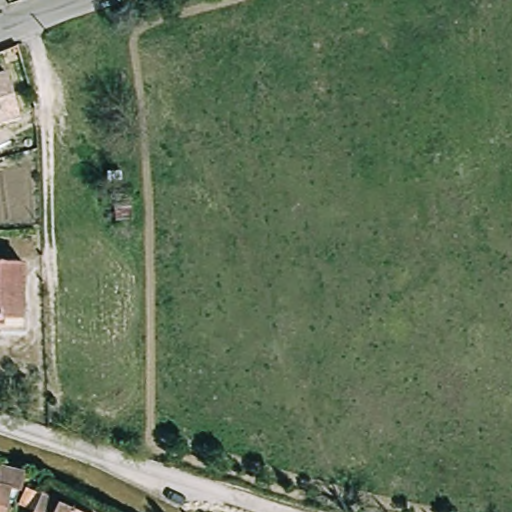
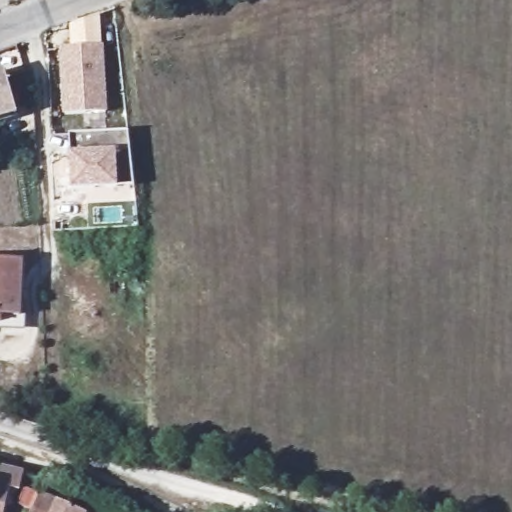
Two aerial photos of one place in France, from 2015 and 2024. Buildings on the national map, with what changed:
new [(107,111),(64,112),(60,47),(71,47),(71,27),(100,16),(102,44),(104,44),(107,111)]
unchanged [(0,116),(0,74),(6,72),(18,110),(0,116)]
new [(118,194),(73,196),(71,142),(130,138),(132,158),(136,193),(118,194)]
unchanged [(25,256),(20,307),(26,307),(24,328),(0,326),(0,254),(25,256)]
unchanged [(1,481),(3,465),(28,472),(25,486),(13,484),(8,512),(0,512),(0,481),(1,481)]
unchanged [(99,512),(33,512),(42,488),(53,492),(89,505),(100,509),(99,512)]

